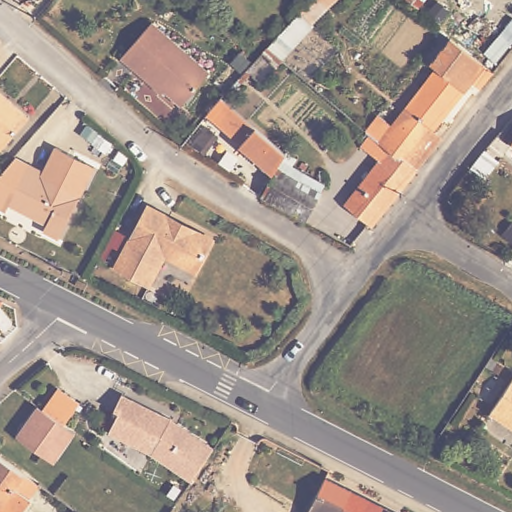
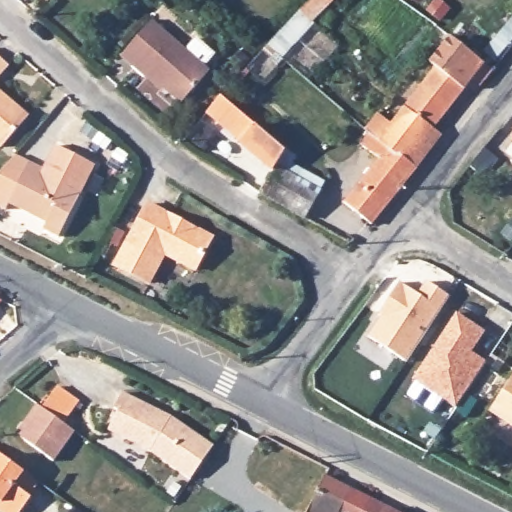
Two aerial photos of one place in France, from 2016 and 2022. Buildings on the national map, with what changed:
unchanged [(263,48),(309,0),(338,0),(280,62),(263,48)]
unchanged [(415,8),(405,0),(421,0),(415,8)]
unchanged [(145,79),(120,59),(152,23),(210,73),(181,106),(147,77),(145,79)]
unchanged [(430,152),(416,170),(396,154),(395,156),(380,143),(380,141),(437,67),(433,63),(451,38),(495,71),(488,81),(485,85),(475,79),(435,131),(442,137),(430,152)]
unchanged [(0,152),(0,96),(27,120),(0,152)]
unchanged [(242,144),(207,115),(220,99),(255,128),(242,144)]
unchanged [(203,153),(192,145),(206,126),(217,134),(203,153)]
unchanged [(345,204),(380,160),(361,145),(370,134),(380,141),(380,143),(395,156),(396,154),(416,170),(417,170),(373,225),(345,204)]
unchanged [(267,163),(278,147),(286,153),(276,169),(267,163)]
unchanged [(55,149),(74,159),(95,170),(81,198),(60,241),(40,231),(43,225),(6,205),(2,212),(0,211),(0,168),(10,155),(42,174),(55,149)]
unchanged [(305,220),(262,196),(278,168),(320,191),(305,220)]
unchanged [(192,226),(195,220),(213,229),(198,263),(166,249),(152,279),(119,263),(147,200),(169,209),(166,214),(192,226)]
new [(381,318),(377,316),(398,284),(417,297),(425,283),(448,298),(406,364),(368,339),(381,318)]
new [(457,315),(485,334),(471,354),(487,364),(456,410),(413,382),(457,315)]
unchanged [(512,377),(512,431),(487,414),(512,377)]
unchanged [(14,433),(35,404),(41,408),(44,410),(59,389),(81,404),(66,426),(72,431),(51,460),(40,453),(14,433)]
unchanged [(175,422),(212,448),(200,464),(189,480),(148,451),(109,432),(119,412),(115,410),(123,394),(170,417),(170,422),(174,425),(175,422)]
unchanged [(41,490),(31,503),(32,504),(26,512),(0,512),(0,459),(41,490)]
unchanged [(306,512),(326,475),(397,512),(306,512)]

